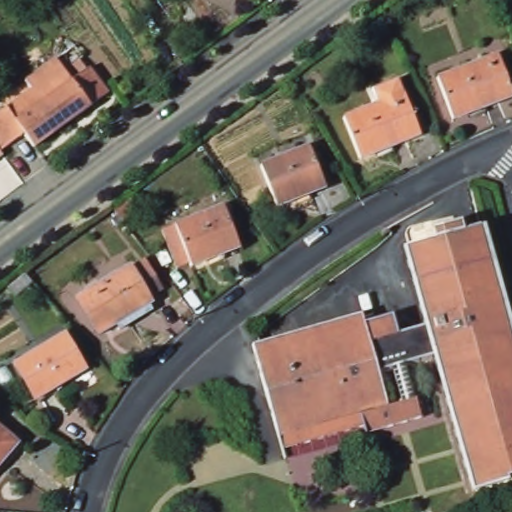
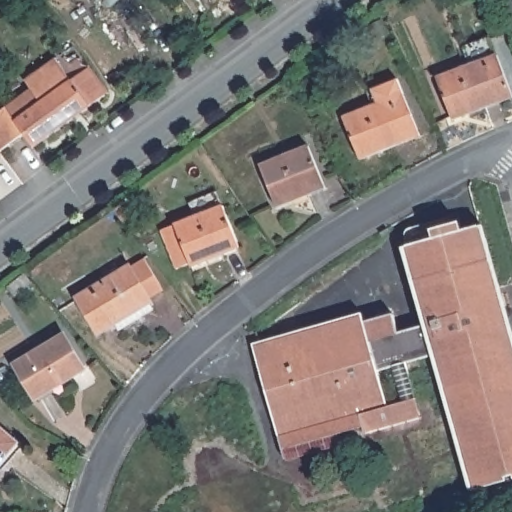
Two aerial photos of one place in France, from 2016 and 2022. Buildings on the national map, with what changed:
unchanged [(24,78),(29,86),(24,67),(46,50),(62,71),(68,67),(62,58),(79,46),(86,56),(91,53),(107,74),(110,78),(38,134),(29,124),(10,139),(13,142),(6,147),(0,152),(0,97),(24,78)]
unchanged [(512,88),(512,96),(457,118),(440,76),(499,53),(512,88)]
unchanged [(377,86),(402,76),(406,91),(383,101),(377,86)]
unchanged [(406,93),(423,136),(366,159),(348,116),(406,93)]
unchanged [(312,147),(329,186),(282,205),(267,164),(312,147)]
unchanged [(118,200),(131,215),(120,223),(108,208),(118,200)]
unchanged [(233,200),(249,242),(203,262),(201,257),(187,263),(172,224),(233,200)]
unchanged [(397,312),(402,334),(428,326),(407,247),(440,237),(438,230),(466,221),(471,232),(484,228),(512,324),(512,481),(478,491),(438,354),(381,371),(390,400),(281,433),(256,343),(366,311),(368,320),(397,312)]
unchanged [(116,331),(111,321),(96,330),(76,292),(142,258),(159,288),(139,298),(142,305),(147,313),(116,331)]
unchanged [(66,334),(87,371),(40,398),(19,360),(66,334)]
unchanged [(281,433),(390,400),(391,404),(420,396),(425,417),(368,432),(365,425),(284,447),(281,433)]
unchanged [(14,445),(0,463),(0,433),(14,445)]

